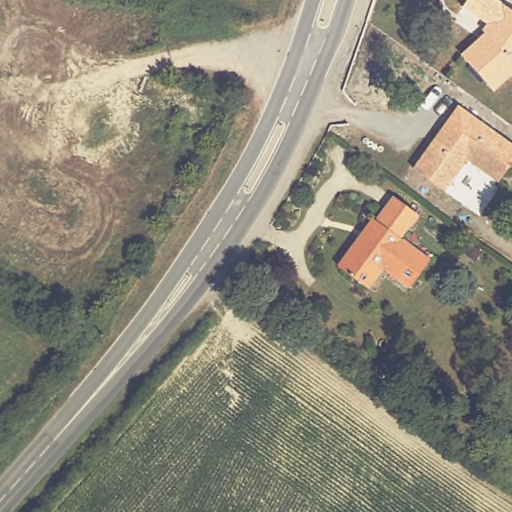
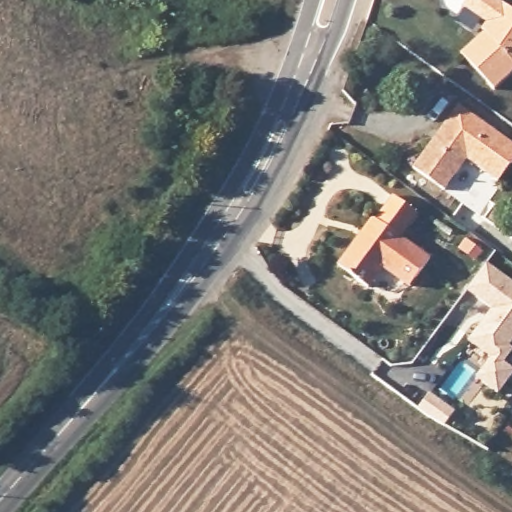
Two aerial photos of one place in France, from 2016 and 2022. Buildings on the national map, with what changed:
unchanged [(461,53),(484,31),(482,28),(501,0),(503,0),(512,6),(512,69),(493,87),(461,53)]
unchanged [(512,142),(512,162),(499,182),(467,160),(446,190),(415,168),(459,105),(512,142)]
unchanged [(370,219),(376,223),(393,198),(414,213),(397,237),(431,260),(412,287),(382,266),(367,287),(337,266),(370,219)]
new [(512,283),(512,345),(510,348),(512,350),(512,354),(504,365),(512,371),(512,378),(499,396),(477,380),(492,360),(470,343),(493,311),(467,292),(487,265),(512,283)]
new [(431,396),(456,414),(446,428),(427,417),(419,412),(431,396)]

